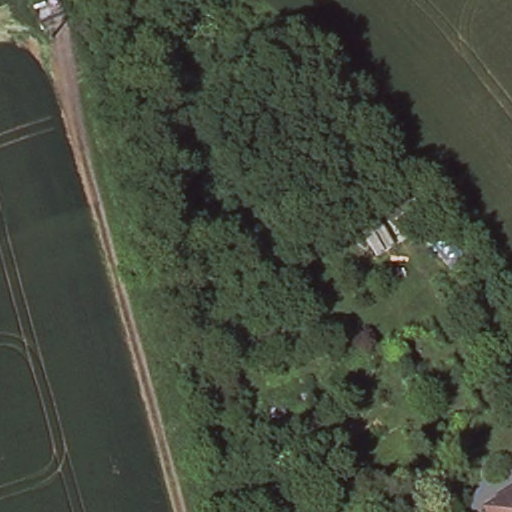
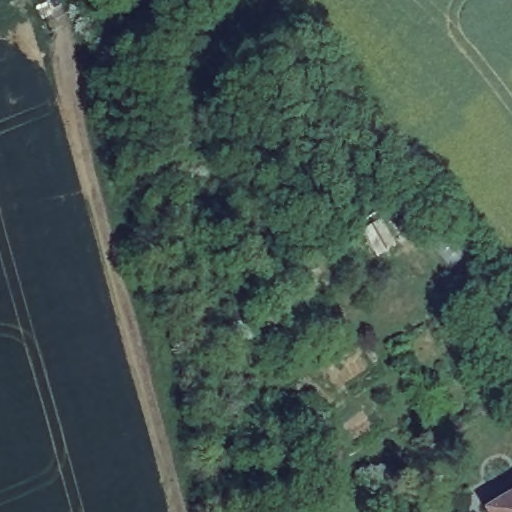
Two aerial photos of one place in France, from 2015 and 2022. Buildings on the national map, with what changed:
unchanged [(426,182),(432,190),(448,219),(370,262),(355,226),(426,182)]
unchanged [(482,512),(481,511),(512,493),(512,512),(482,512)]

